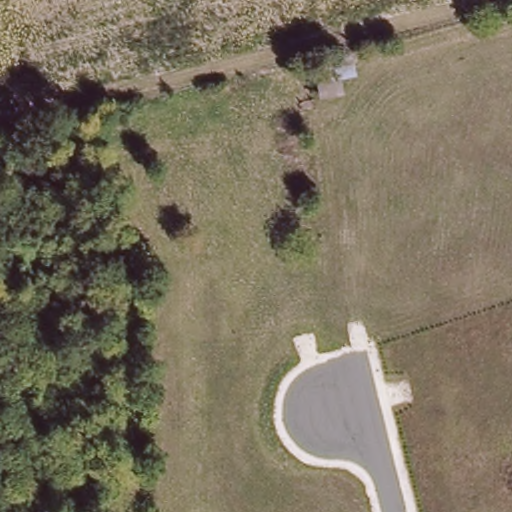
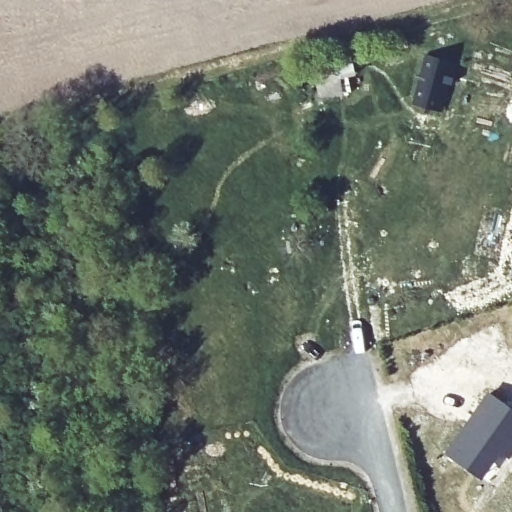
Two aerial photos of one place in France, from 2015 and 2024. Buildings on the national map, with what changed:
unchanged [(351,59),(355,77),(342,81),(343,93),(318,99),(313,66),(351,59)]
new [(488,391),(512,408),(512,455),(508,460),(504,458),(501,462),(497,460),(483,479),(444,453),(488,391)]

